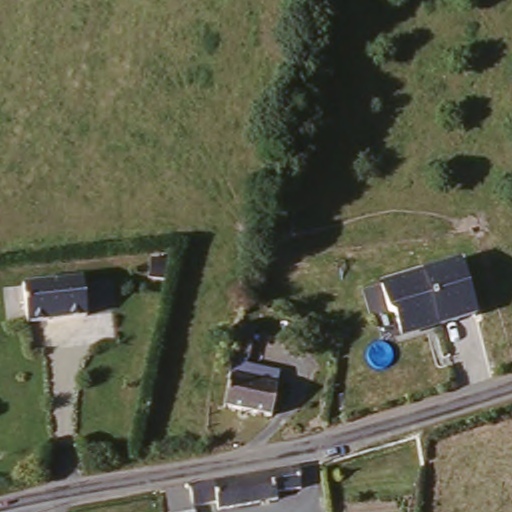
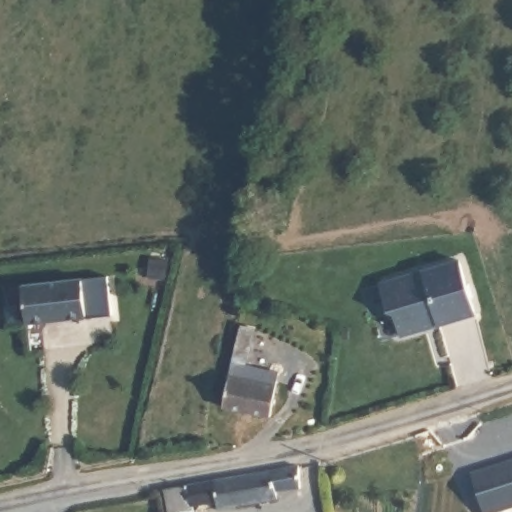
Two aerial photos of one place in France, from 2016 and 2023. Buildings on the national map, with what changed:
unchanged [(400,314),(394,310),(386,284),(465,260),(480,314),(445,324),(443,320),(427,324),(423,331),(407,335),(400,314)]
unchanged [(82,274),(88,312),(31,316),(28,279),(82,274)]
unchanged [(232,375),(240,337),(243,325),(257,328),(250,365),(284,371),(275,415),(226,405),(232,375)]
new [(512,459),(512,507),(498,512),(484,512),(471,471),(512,459)]
unchanged [(302,464),(302,485),(281,489),(280,494),(221,505),(221,499),(198,503),(197,508),(175,511),(170,485),(302,464)]

